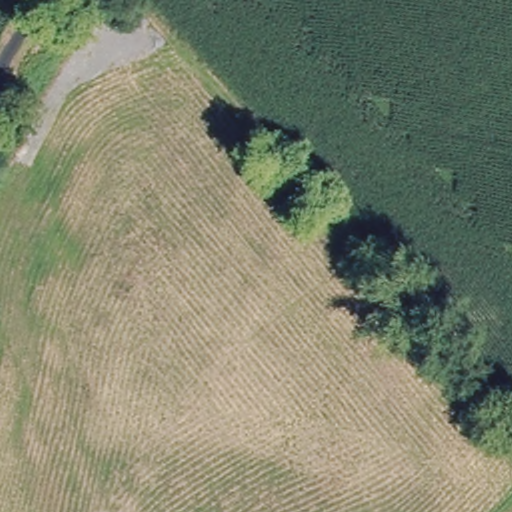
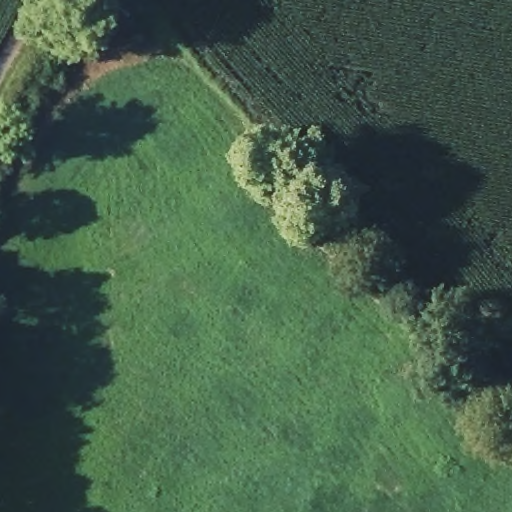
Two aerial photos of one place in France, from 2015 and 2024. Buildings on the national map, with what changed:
unchanged [(114,0),(127,0),(136,4),(122,21),(107,10),(114,0)]

